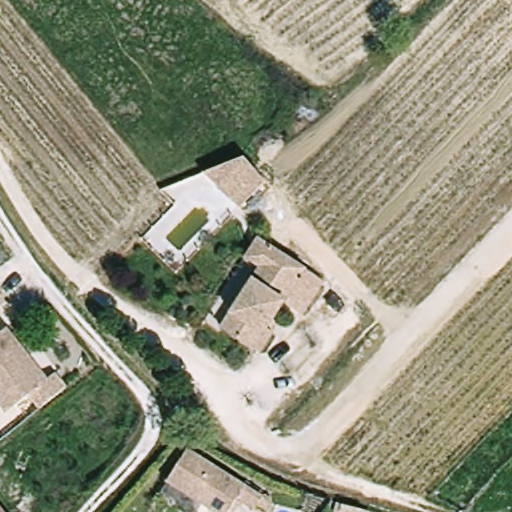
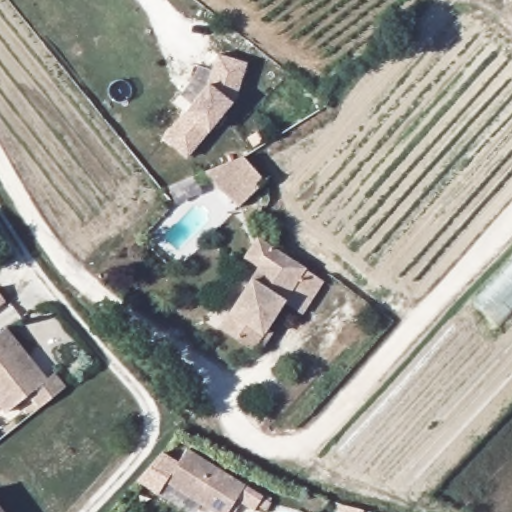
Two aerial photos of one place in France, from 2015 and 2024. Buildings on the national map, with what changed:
new [(185,113),(207,83),(217,54),(248,63),(234,104),(209,133),(188,160),(162,139),(185,113)]
unchanged [(239,158),(261,182),(237,209),(199,173),(239,158)]
unchanged [(256,353),(249,348),(217,328),(255,266),(241,257),(252,238),(267,248),(318,280),(297,313),(279,301),(262,328),(269,332),(256,353)]
new [(512,259),(512,315),(499,330),(472,301),(512,259)]
unchanged [(0,308),(0,298),(5,305),(0,308)]
unchanged [(0,409),(0,332),(4,329),(25,356),(32,350),(52,375),(64,388),(39,410),(28,396),(5,415),(0,409)]
unchanged [(233,494),(221,512),(220,512),(165,477),(185,446),(267,499),(262,505),(254,500),(251,505),(233,494)]

